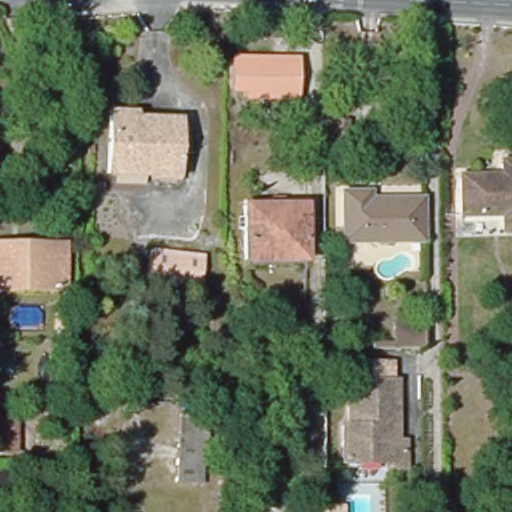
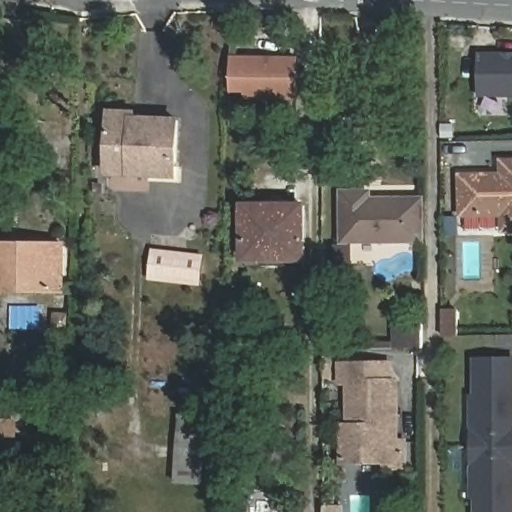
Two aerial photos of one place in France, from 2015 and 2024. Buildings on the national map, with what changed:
new [(483,52),(512,52),(512,96),(483,96),(483,52)]
unchanged [(297,100),(246,100),(245,91),(232,91),(233,55),(299,56),(297,100)]
unchanged [(136,112),(136,119),(178,121),(176,177),(108,175),(110,112),(136,112)]
new [(325,124),(346,123),(346,149),(325,149),(325,124)]
unchanged [(506,217),(467,217),(466,177),(507,177),(506,164),(512,164),(512,233),(507,234),(506,217)]
unchanged [(369,194),(370,201),(422,202),(422,243),(343,242),(343,194),(369,194)]
unchanged [(306,207),(307,262),(243,262),(243,207),(306,207)]
unchanged [(70,244),(71,295),(0,295),(0,243),(70,244)]
new [(153,251),(202,257),(199,284),(150,279),(153,251)]
new [(394,343),(393,322),(418,322),(419,349),(394,350),(371,349),(371,343),(394,343)]
new [(475,394),(475,357),(512,358),(512,447),(471,447),(471,394),(475,394)]
unchanged [(409,440),(410,467),(393,467),(393,460),(348,460),(348,423),(354,422),(354,380),(401,378),(402,422),(402,440),(409,440)]
unchanged [(16,455),(0,455),(0,420),(16,420),(16,455)]
unchanged [(207,441),(207,470),(177,468),(177,452),(182,451),(182,440),(207,441)]
new [(512,447),(512,512),(475,512),(475,501),(471,502),(471,447),(512,447)]
new [(342,510),(342,512),(324,512),(324,510),(342,510)]

